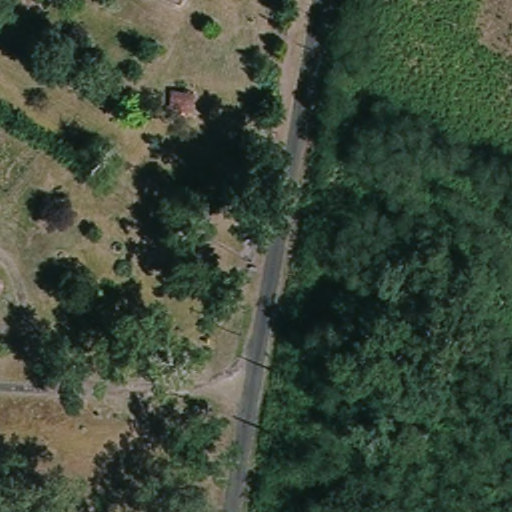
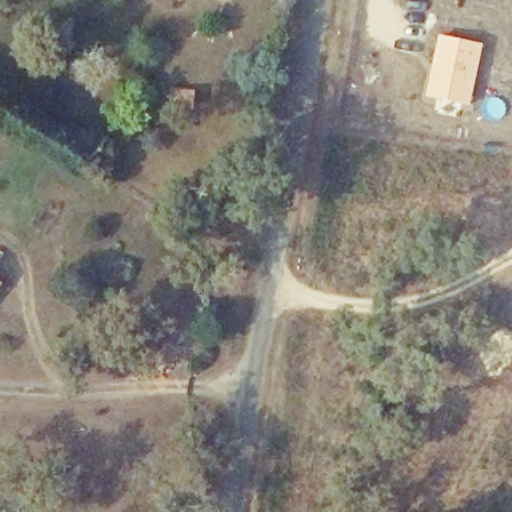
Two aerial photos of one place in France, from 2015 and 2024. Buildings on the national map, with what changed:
new [(439,34),(485,44),(470,106),(425,96),(439,34)]
unchanged [(198,106),(185,100),(192,84),(205,90),(198,106)]
unchanged [(0,280),(10,288),(0,300),(0,280)]
unchanged [(345,472),(341,503),(318,497),(320,486),(323,464),(345,472)]

